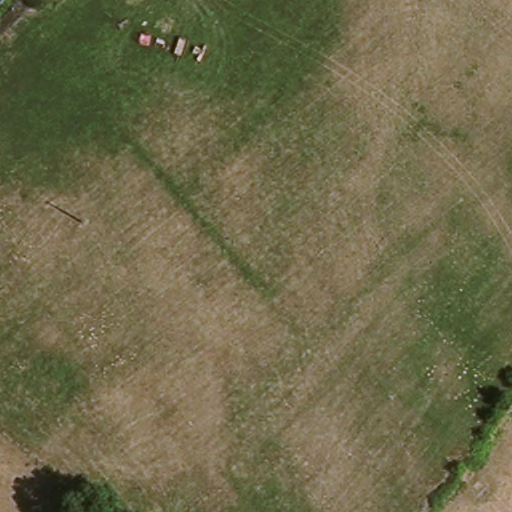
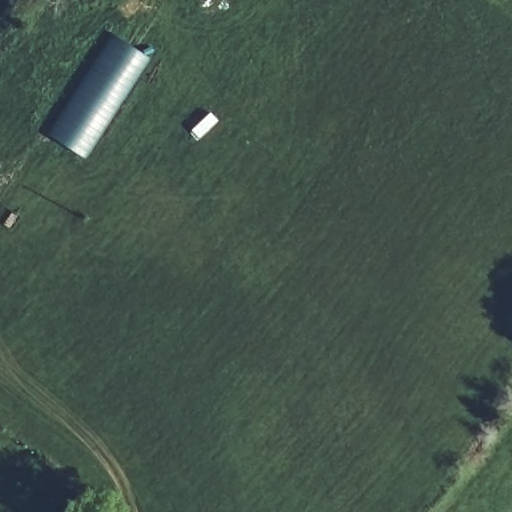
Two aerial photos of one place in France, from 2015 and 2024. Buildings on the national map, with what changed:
new [(110,31),(152,58),(87,159),(45,134),(110,31)]

